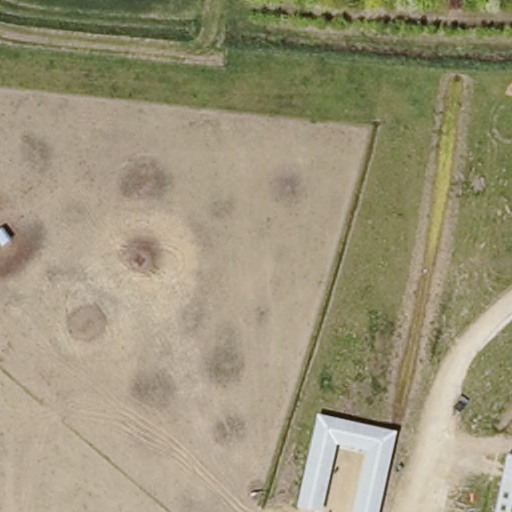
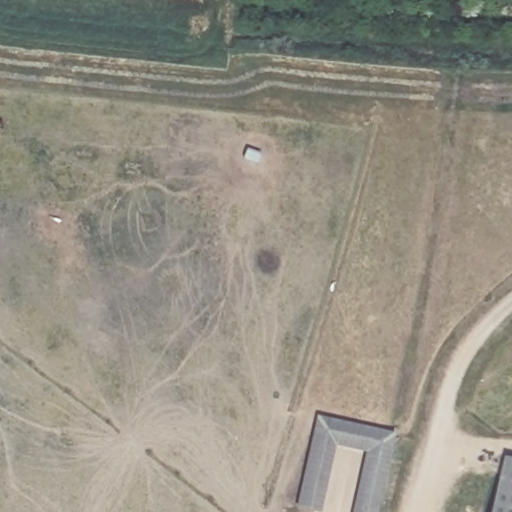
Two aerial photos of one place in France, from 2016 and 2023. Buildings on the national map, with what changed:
unchanged [(396,433),(379,512),(353,512),(366,451),(335,445),(322,512),(313,512),(295,508),(317,415),(396,433)]
unchanged [(493,512),(504,457),(512,459),(512,512),(493,512)]

